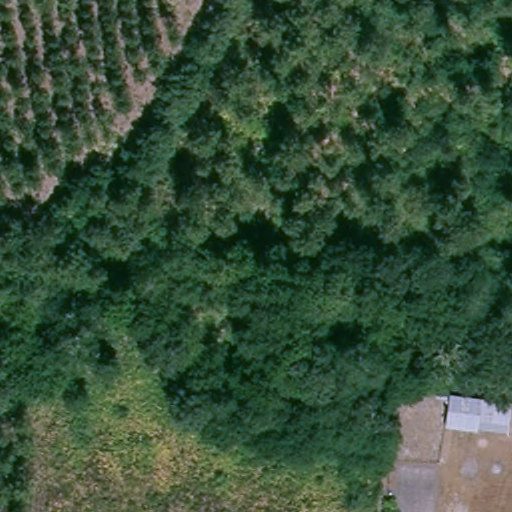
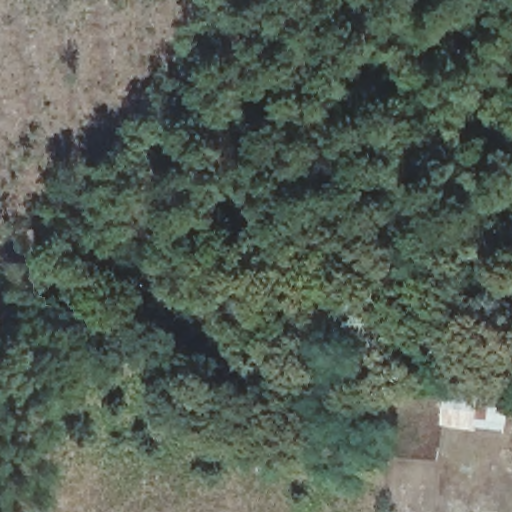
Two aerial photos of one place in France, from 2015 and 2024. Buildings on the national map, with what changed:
unchanged [(447,390),(507,400),(505,431),(443,423),(447,390)]

